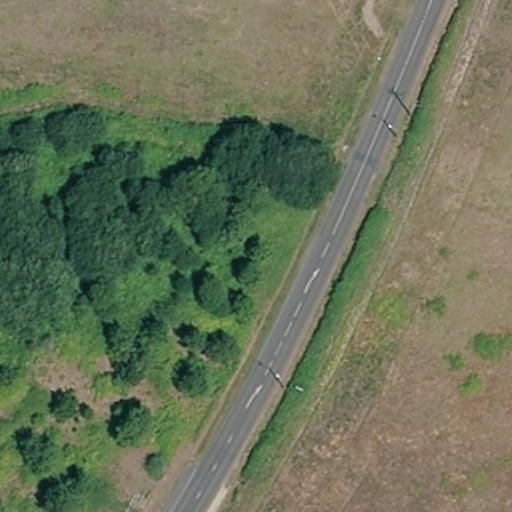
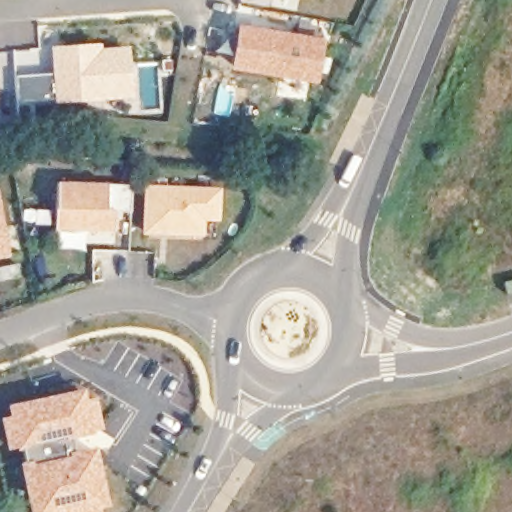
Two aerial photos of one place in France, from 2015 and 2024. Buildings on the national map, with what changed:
new [(237,24),(327,40),(320,86),(229,69),(237,24)]
new [(102,43),(102,47),(129,45),(133,99),(52,103),(50,72),(49,46),(102,43)]
new [(50,72),(52,103),(15,104),(14,74),(50,72)]
new [(109,184),(132,185),(131,213),(117,212),(116,234),(57,232),(57,208),(59,182),(109,184)]
new [(223,189),(222,223),(206,223),(206,237),(143,236),(145,185),(223,189)]
new [(12,257),(0,259),(0,192),(12,257)]
new [(20,449),(7,453),(0,424),(0,417),(7,415),(5,404),(92,387),(103,432),(72,441),(74,450),(96,446),(109,506),(99,509),(100,512),(29,512),(17,463),(23,461),(20,449)]

